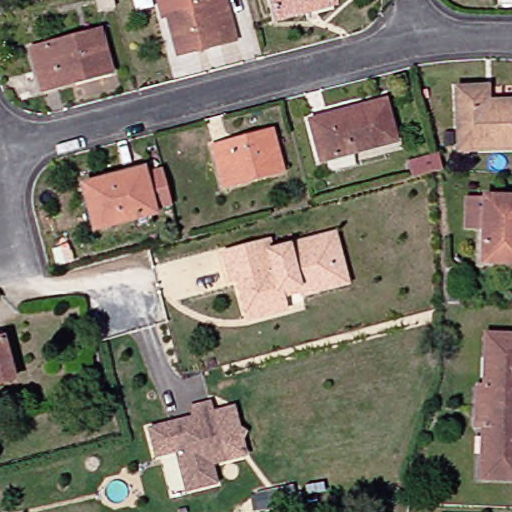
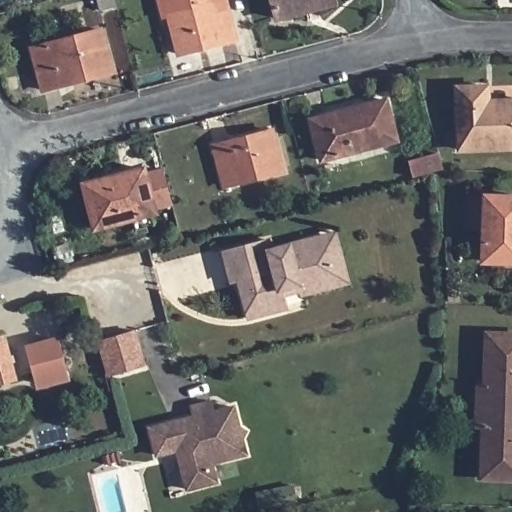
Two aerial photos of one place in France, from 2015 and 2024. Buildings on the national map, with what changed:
unchanged [(174,15),(169,16),(165,0),(230,0),(232,8),(241,38),(185,54),(174,15)]
unchanged [(341,0),(342,3),(282,19),(277,0),(341,0)]
unchanged [(83,80),(48,90),(36,48),(107,29),(117,66),(118,71),(83,80)]
unchanged [(462,88),(492,86),(493,101),(512,100),(512,148),(465,149),(462,88)]
unchanged [(316,119),(391,100),(402,141),(327,160),(316,119)]
unchanged [(218,145),(277,130),(288,170),(230,186),(218,145)]
unchanged [(415,162),(444,153),(447,168),(418,177),(415,162)]
unchanged [(143,169),(145,174),(164,169),(172,203),(153,208),(155,212),(95,228),(84,185),(143,169)]
unchanged [(482,228),(482,198),(500,198),(500,196),(512,196),(512,262),(498,261),(499,228),(482,228)]
unchanged [(292,289),(346,274),(335,234),(345,232),(358,282),(312,294),(310,290),(293,294),(292,289)]
unchanged [(248,279),(241,281),(233,251),(275,239),(278,249),(335,234),(346,274),(292,289),(293,294),(297,308),(258,318),(248,279)]
new [(135,330),(145,366),(107,376),(98,340),(135,330)]
unchanged [(490,386),(495,387),(497,334),(512,334),(512,407),(489,406),(490,386)]
unchanged [(15,378),(0,382),(0,337),(4,336),(15,378)]
new [(60,338),(69,374),(36,383),(27,347),(60,338)]
unchanged [(157,454),(150,426),(178,419),(195,416),(192,406),(211,401),(213,411),(234,406),(239,426),(245,430),(242,437),(246,453),(212,462),(217,481),(187,488),(177,449),(157,454)]
unchanged [(492,479),(493,426),(488,426),(489,406),(512,407),(512,479),(492,479)]

